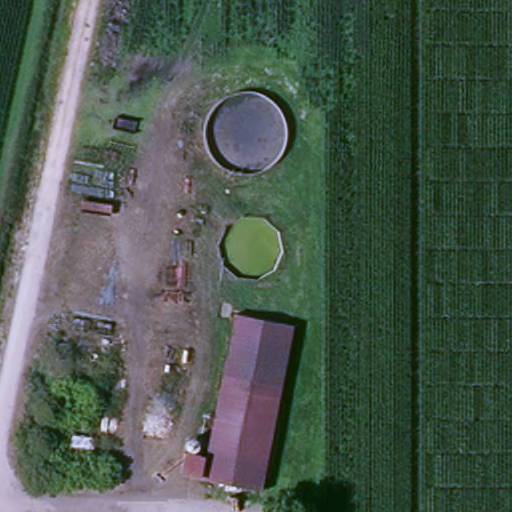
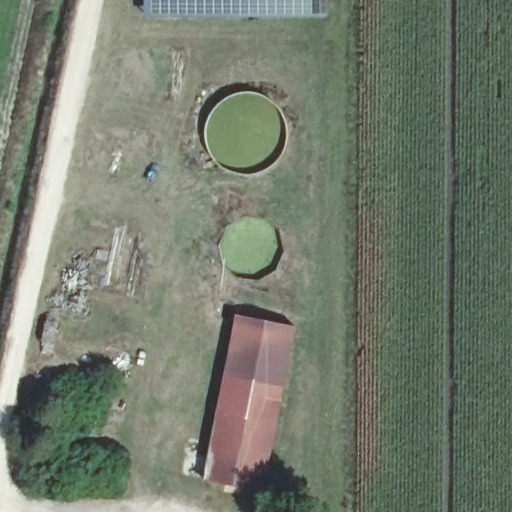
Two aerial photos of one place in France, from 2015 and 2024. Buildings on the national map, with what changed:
new [(145,0),(325,0),(324,14),(145,16),(145,0)]
unchanged [(202,481),(182,477),(187,460),(202,461),(232,313),(298,322),(262,492),(202,481)]

